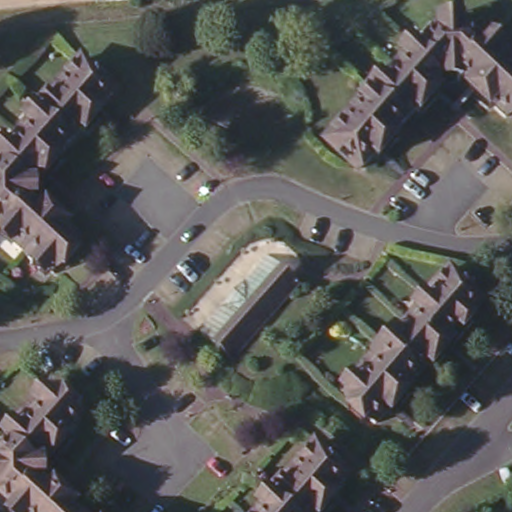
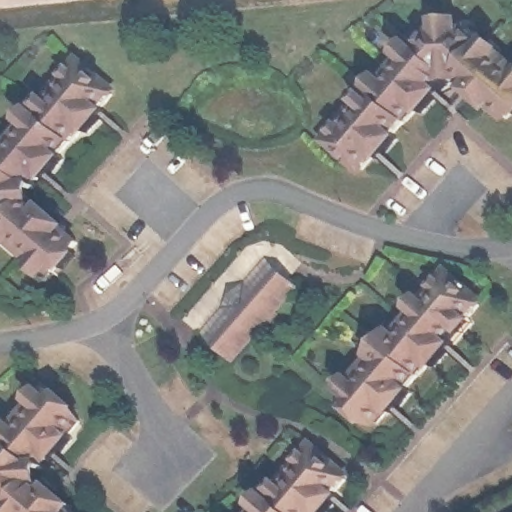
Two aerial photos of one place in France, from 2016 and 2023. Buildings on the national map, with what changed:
unchanged [(372,149),(359,162),(330,136),(341,124),(337,119),(357,97),(362,101),(383,77),(380,74),(400,51),(404,55),(431,25),(465,23),(496,49),(500,45),(512,56),(512,102),(504,112),(490,99),(486,105),(465,87),(470,82),(464,76),(460,82),(455,78),(445,77),(419,106),(414,102),(392,127),(395,130),(376,152),(372,149)]
unchanged [(65,225),(61,231),(72,241),(46,270),(34,260),(31,263),(6,242),(9,237),(0,229),(0,156),(5,150),(2,147),(21,126),(24,128),(46,103),(43,100),(63,78),(66,80),(76,67),(106,94),(95,106),(101,111),(81,133),(76,129),(53,155),(57,159),(39,181),(34,177),(29,183),(33,186),(31,188),(33,197),(65,225)]
unchanged [(270,257),(301,286),(281,309),(283,311),(260,338),(258,336),(234,361),(202,332),(270,257)]
unchanged [(380,412),(375,408),(364,420),(337,395),(348,382),(345,380),(365,357),(368,360),(389,336),(388,334),(407,311),(409,314),(420,302),(417,300),(428,289),(431,290),(441,278),(469,303),(456,317),(460,321),(421,366),(416,361),(394,387),(398,390),(380,412)]
unchanged [(12,505),(0,494),(0,430),(10,420),(7,416),(27,394),(30,397),(41,384),(69,410),(56,424),(61,428),(36,458),(35,463),(39,467),(35,471),(40,476),(43,472),(70,497),(66,500),(78,512),(14,512),(10,508),(12,505)]
unchanged [(275,483),(296,460),(299,464),(310,452),(338,476),(326,490),(331,494),(316,512),(310,512),(309,511),(308,512),(258,512),(279,486),(275,483)]
unchanged [(257,512),(250,512),(253,509),(257,512)]

